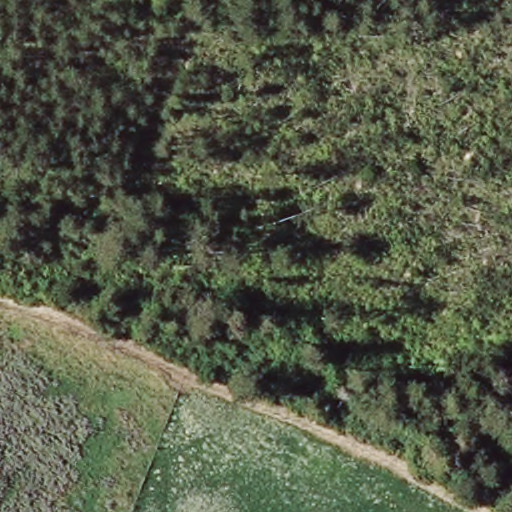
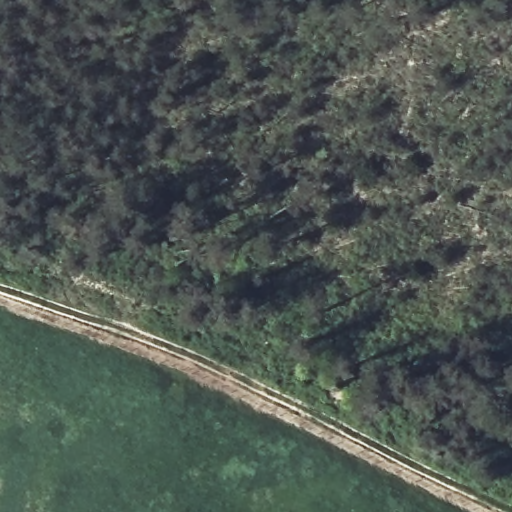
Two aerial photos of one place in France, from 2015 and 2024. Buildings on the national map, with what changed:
[]

